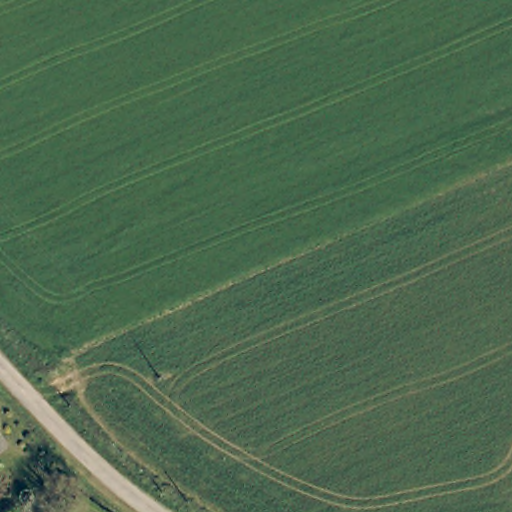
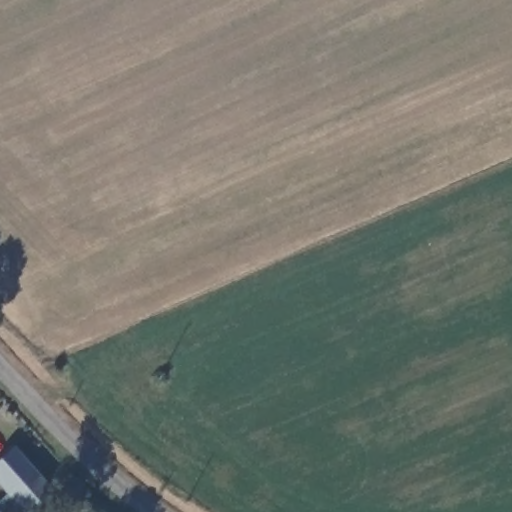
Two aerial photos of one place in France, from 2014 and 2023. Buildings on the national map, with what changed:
new [(1,512),(0,511),(0,499),(6,493),(0,486),(0,461),(16,447),(50,487),(25,512),(1,512)]

